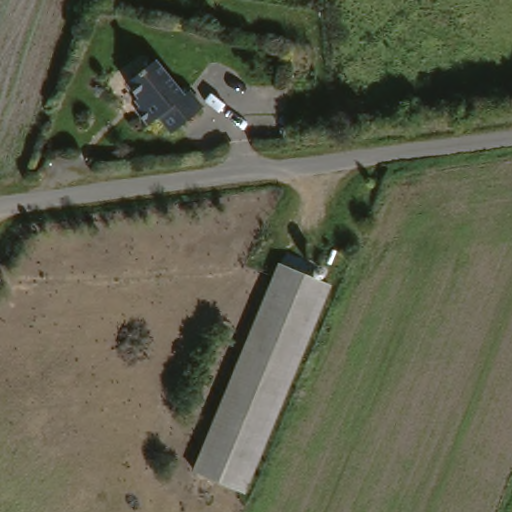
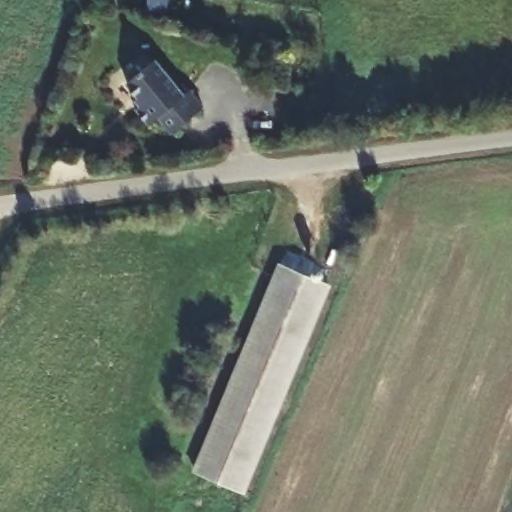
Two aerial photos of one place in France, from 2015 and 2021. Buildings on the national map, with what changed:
unchanged [(201,111),(170,135),(157,119),(146,127),(133,111),(140,105),(124,85),(154,62),(182,97),(187,93),(201,111)]
unchanged [(236,494),(193,476),(280,266),(323,284),(236,494)]

